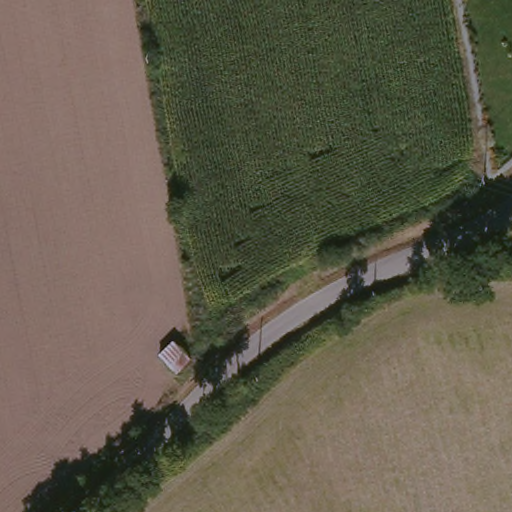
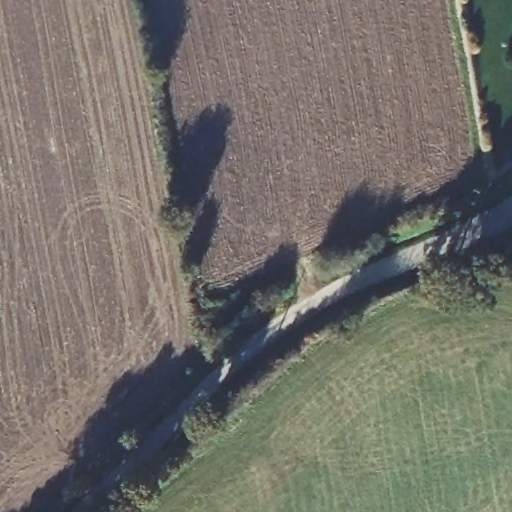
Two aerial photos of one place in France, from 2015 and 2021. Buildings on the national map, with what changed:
unchanged [(170,345),(187,363),(169,380),(152,360),(170,345)]

